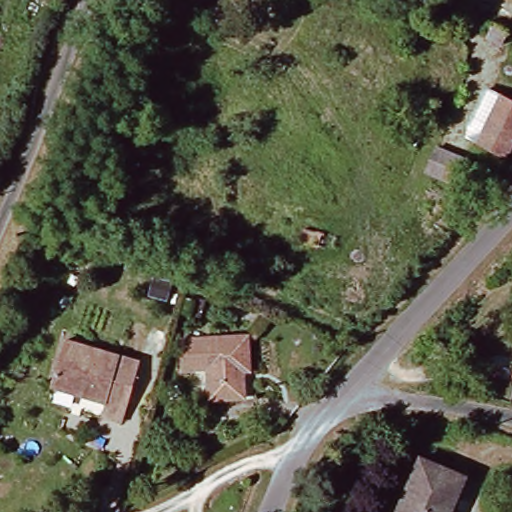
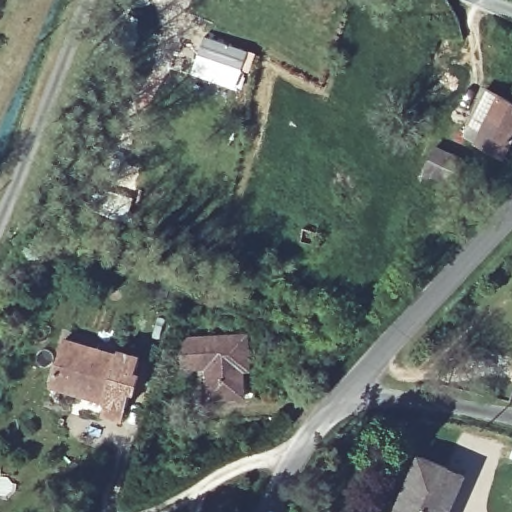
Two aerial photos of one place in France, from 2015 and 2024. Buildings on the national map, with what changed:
new [(206,32),(259,52),(250,72),(244,70),(198,51),(206,32)]
new [(198,51),(244,70),(237,90),(190,72),(198,51)]
unchanged [(483,149),(471,144),(494,96),(512,104),(512,137),(493,128),(483,149)]
unchanged [(210,370),(188,373),(183,343),(244,333),(249,363),(239,365),(243,394),(215,399),(210,370)]
unchanged [(99,418),(102,405),(48,390),(60,345),(135,366),(124,411),(120,424),(99,418)]
unchanged [(464,480),(449,512),(399,512),(423,461),(464,480)]

